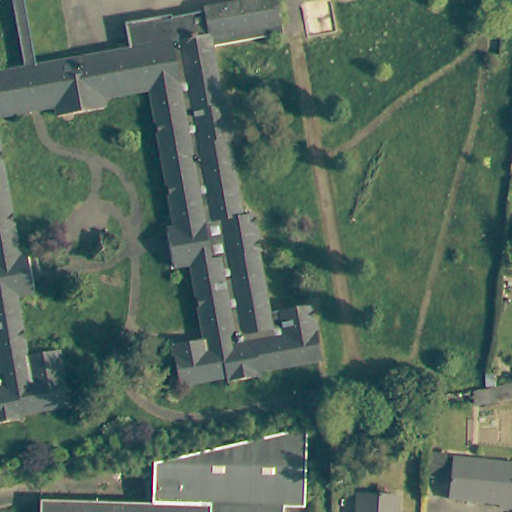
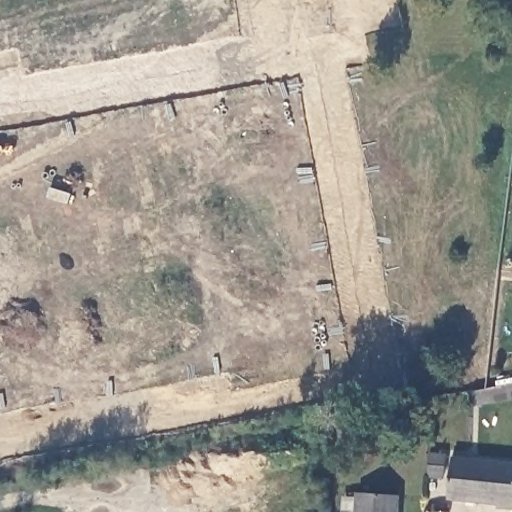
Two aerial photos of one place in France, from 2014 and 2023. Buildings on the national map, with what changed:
demolished [(6,1),(3,4),(0,6),(0,0),(7,0),(6,1)]
demolished [(20,36),(17,22),(14,0),(25,0),(28,20),(36,65),(48,63),(66,60),(77,112),(67,114),(57,116),(55,105),(0,115),(0,72),(26,67),(20,36)]
demolished [(279,32),(208,45),(202,10),(200,10),(200,7),(240,0),(274,0),(279,32)]
demolished [(168,13),(169,16),(200,10),(202,10),(208,45),(219,102),(209,103),(150,113),(145,88),(133,91),(127,21),(168,13)]
demolished [(73,58),(72,51),(126,41),(124,32),(122,22),(127,21),(133,91),(96,97),(98,107),(96,107),(77,112),(66,60),(73,58)]
demolished [(171,268),(167,247),(163,229),(171,227),(157,150),(180,145),(179,131),(212,124),(209,103),(219,102),(220,109),(225,108),(225,114),(229,140),(225,141),(228,152),(239,217),(252,215),(254,227),(258,254),(256,254),(259,272),(259,277),(221,282),(194,287),(197,306),(240,300),(262,297),(265,315),(271,314),(269,317),(259,318),(197,326),(190,278),(187,265),(171,268)]
demolished [(212,124),(179,131),(180,145),(157,150),(150,113),(209,103),(212,124)]
demolished [(28,255),(30,270),(0,275),(0,143),(20,256),(28,255)]
demolished [(18,296),(28,357),(59,352),(59,355),(0,368),(0,275),(30,270),(34,293),(18,296)]
demolished [(262,297),(240,300),(197,306),(194,287),(221,282),(259,277),(262,297)]
demolished [(307,307),(317,361),(270,370),(259,318),(269,317),(271,314),(307,307)]
demolished [(270,370),(257,372),(258,377),(224,384),(222,377),(175,386),(169,347),(200,341),(197,326),(259,318),(270,370)]
demolished [(24,412),(25,418),(0,423),(0,368),(59,355),(68,405),(24,412)]
demolished [(315,438),(310,512),(44,512),(45,497),(154,506),(157,468),(315,438)]
unchanged [(499,508),(499,505),(449,499),(453,458),(512,465),(512,509),(499,508)]
unchanged [(356,512),(358,490),(398,493),(397,512),(356,512)]

